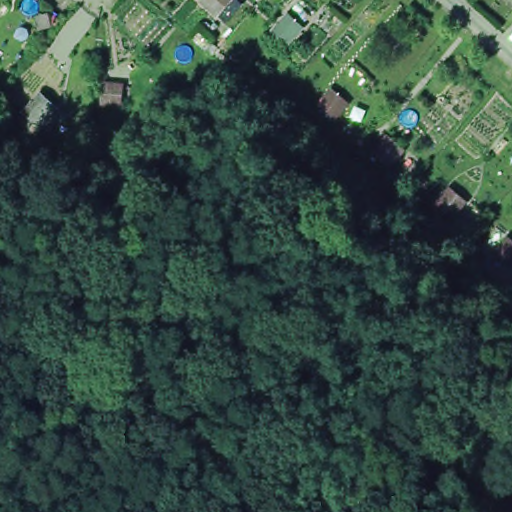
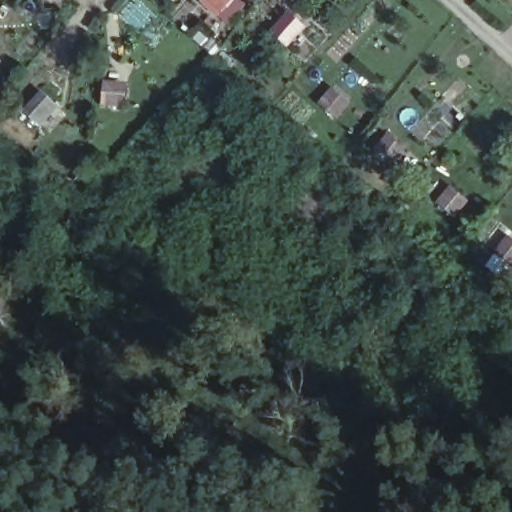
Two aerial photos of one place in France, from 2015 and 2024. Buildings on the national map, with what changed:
unchanged [(218,22),(194,6),(198,0),(234,0),(235,1),(218,22)]
unchanged [(309,28),(288,51),(271,37),(292,13),(309,28)]
unchanged [(127,81),(128,107),(107,108),(105,82),(127,81)]
unchanged [(334,87),(355,102),(341,120),(319,105),(334,87)]
unchanged [(44,93),(61,106),(41,128),(26,114),(44,93)]
unchanged [(389,133),(409,149),(395,166),(375,151),(389,133)]
unchanged [(452,186),(470,202),(455,217),(439,202),(452,186)]
unchanged [(497,253),(510,236),(512,238),(512,266),(497,253)]

